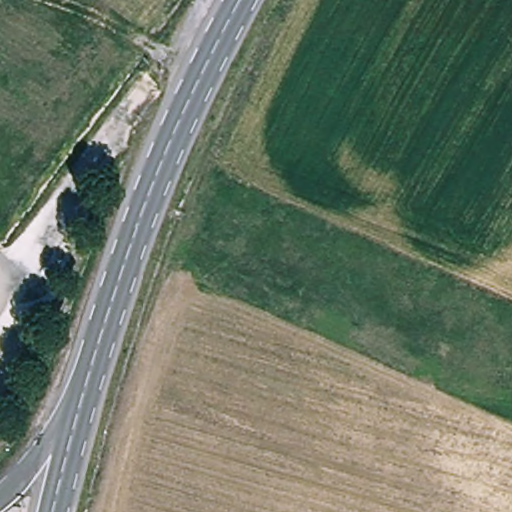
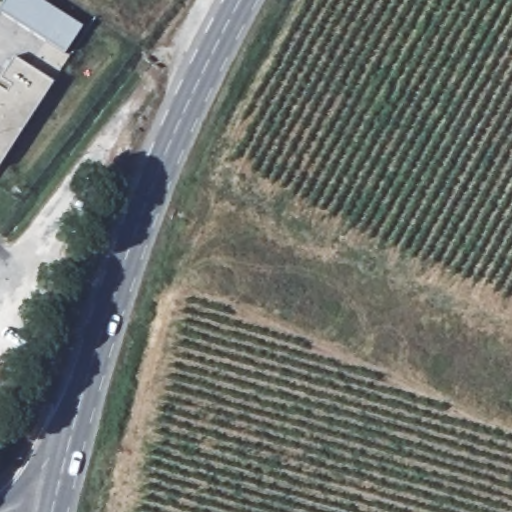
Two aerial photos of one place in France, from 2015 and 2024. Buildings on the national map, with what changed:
new [(40,0),(82,27),(65,55),(0,13),(0,8),(5,0),(40,0)]
new [(6,93),(11,86),(0,79),(13,58),(55,83),(0,165),(0,89),(6,93)]

